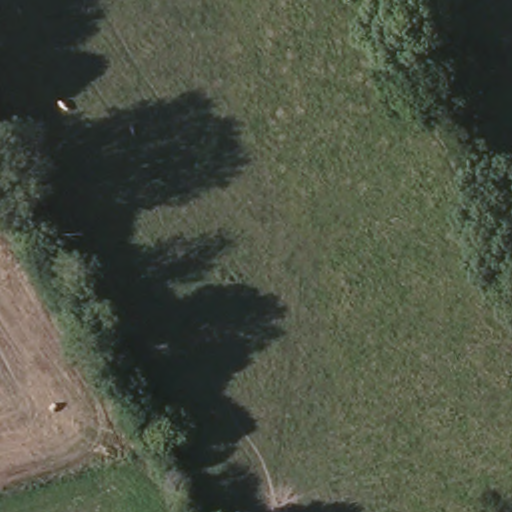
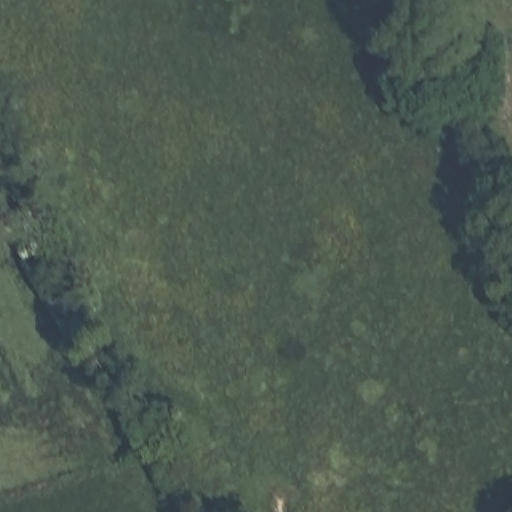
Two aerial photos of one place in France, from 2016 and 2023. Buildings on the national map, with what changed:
[]

